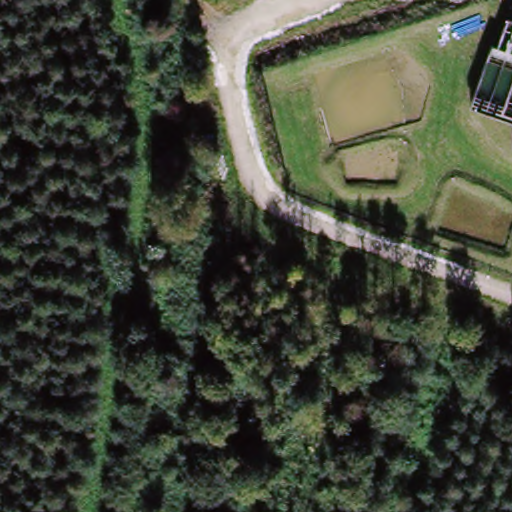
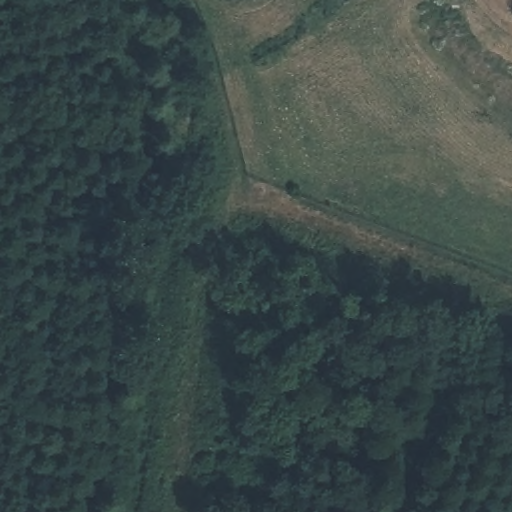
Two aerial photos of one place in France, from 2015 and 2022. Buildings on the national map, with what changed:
demolished [(501,127),(473,122),(486,52),(493,53),(497,32),(512,35),(512,58),(511,66),(512,66),(512,125),(501,123),(501,127)]

